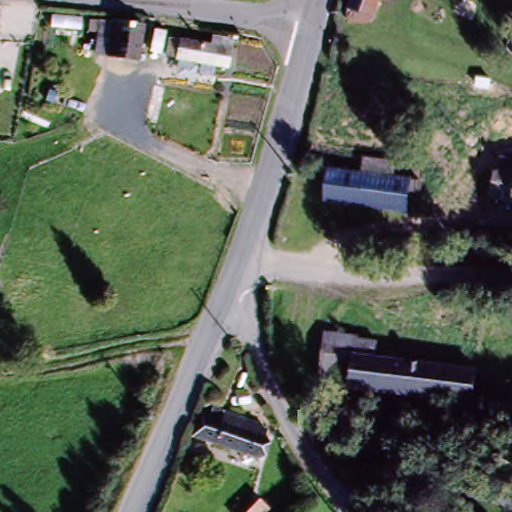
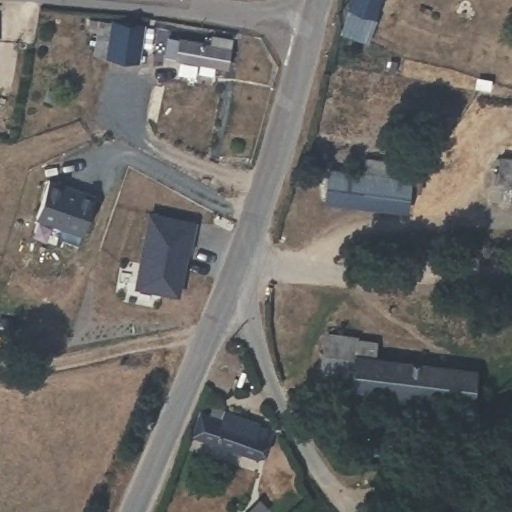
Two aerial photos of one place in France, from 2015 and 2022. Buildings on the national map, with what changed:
unchanged [(347,15),(352,0),(378,0),(370,23),(347,15)]
unchanged [(2,25),(0,36),(0,25),(2,25)]
unchanged [(140,28),(137,64),(110,61),(113,25),(140,28)]
unchanged [(183,74),(185,64),(167,61),(161,61),(163,41),(168,42),(195,46),(196,37),(215,39),(215,48),(211,66),(199,65),(197,75),(183,74)]
unchanged [(512,210),(482,206),(486,176),(494,177),(497,160),(508,163),(512,163),(512,210)]
unchanged [(382,166),(405,169),(403,184),(420,187),(415,215),(323,200),(327,171),(381,181),(382,166)]
new [(50,181),(93,195),(81,231),(38,217),(50,181)]
new [(150,213),(197,220),(193,248),(190,248),(183,291),(140,285),(150,213)]
unchanged [(325,339),(318,379),(317,384),(288,380),(266,323),(266,322),(295,328),(326,332),(325,339)]
unchanged [(362,345),(360,359),(357,386),(318,379),(325,339),(362,345)]
unchanged [(475,376),(472,402),(357,386),(360,359),(475,376)]
unchanged [(190,439),(198,415),(212,420),(214,413),(228,417),(243,422),(257,426),(255,430),(263,432),(262,439),(255,463),(190,439)]

